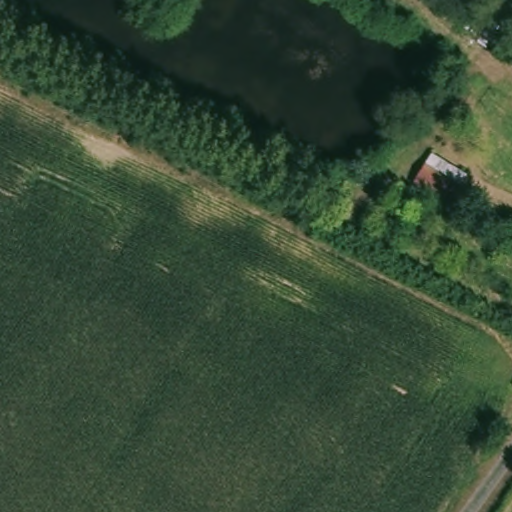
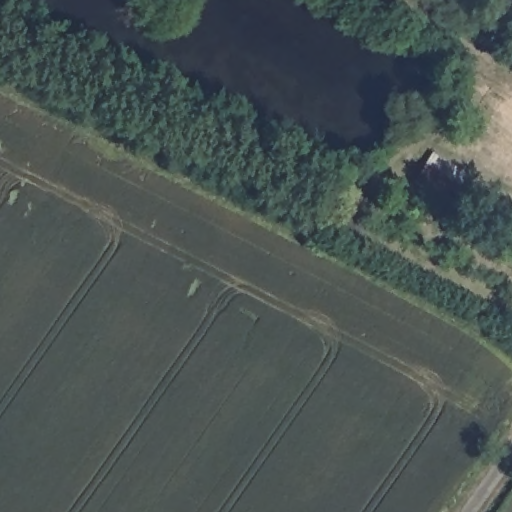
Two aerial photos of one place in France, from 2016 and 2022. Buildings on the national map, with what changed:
unchanged [(468,172),(452,206),(412,185),(432,154),(468,172)]

